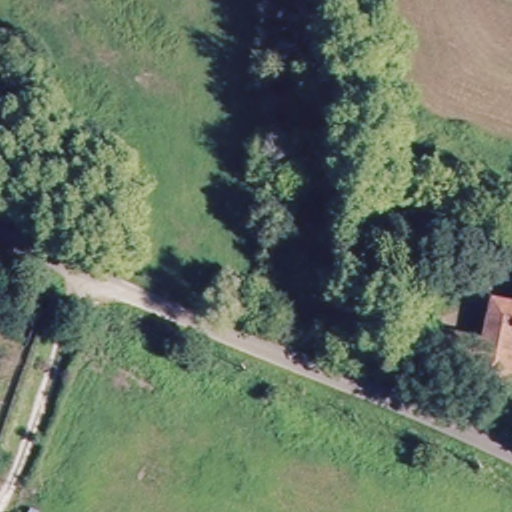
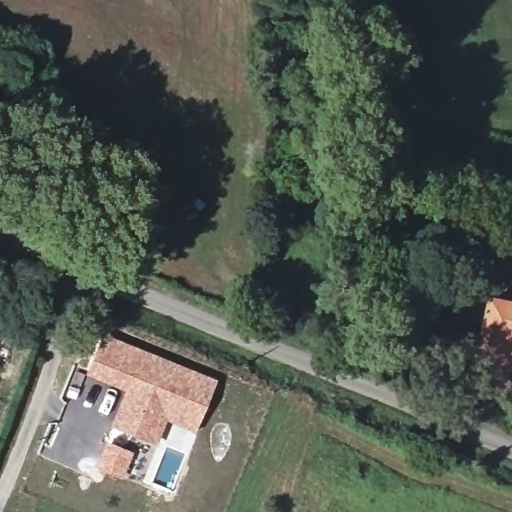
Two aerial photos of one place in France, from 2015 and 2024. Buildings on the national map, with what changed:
unchanged [(508,381),(483,377),(484,369),(443,362),(447,336),(486,343),(494,303),(512,306),(512,363),(508,381)]
new [(194,431),(165,421),(155,445),(109,428),(124,392),(83,376),(100,333),(216,379),(194,431)]

